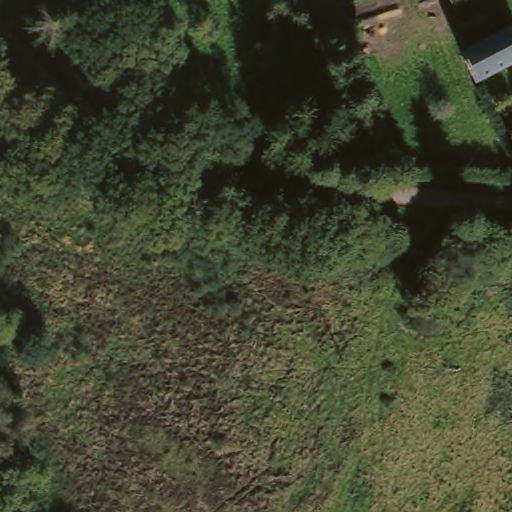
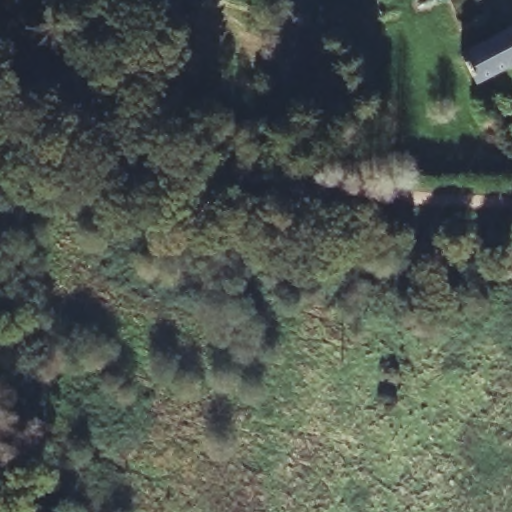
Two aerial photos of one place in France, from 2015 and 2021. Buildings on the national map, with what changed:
unchanged [(475,46),(505,33),(512,29),(512,61),(470,81),(459,54),(475,46)]

